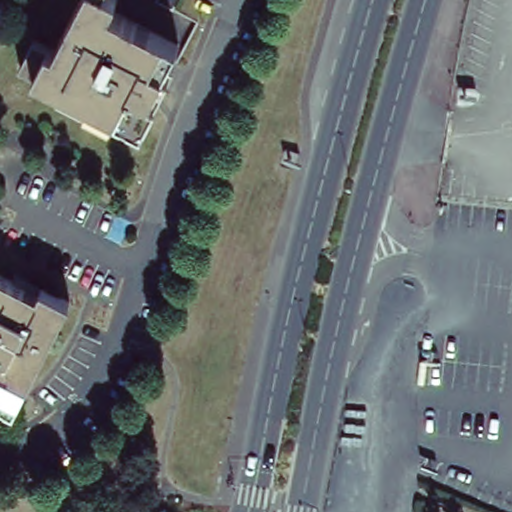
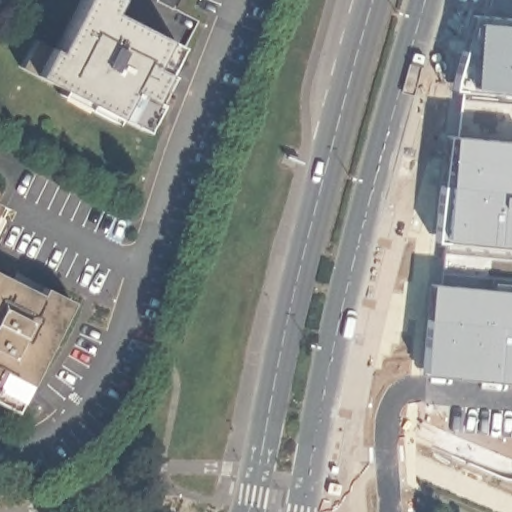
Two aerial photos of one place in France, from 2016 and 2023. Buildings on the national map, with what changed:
unchanged [(181,44),(153,97),(159,100),(144,126),(24,65),(38,37),(57,47),(82,0),(118,0),(113,10),(181,44)]
unchanged [(183,0),(176,12),(160,5),(163,0),(183,0)]
new [(459,90),(479,19),(512,22),(512,377),(431,370),(459,90)]
unchanged [(44,284),(73,298),(16,410),(0,401),(0,270),(40,291),(44,284)]

